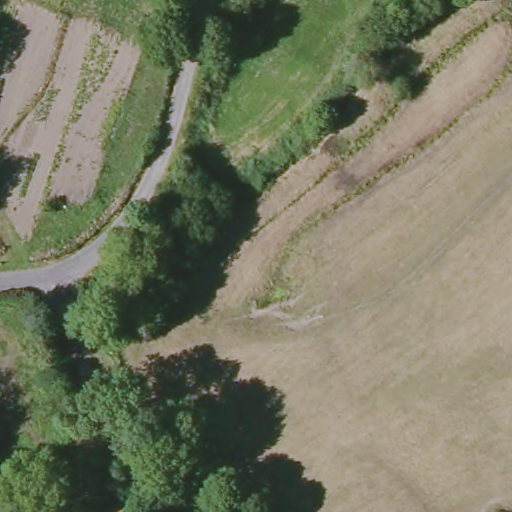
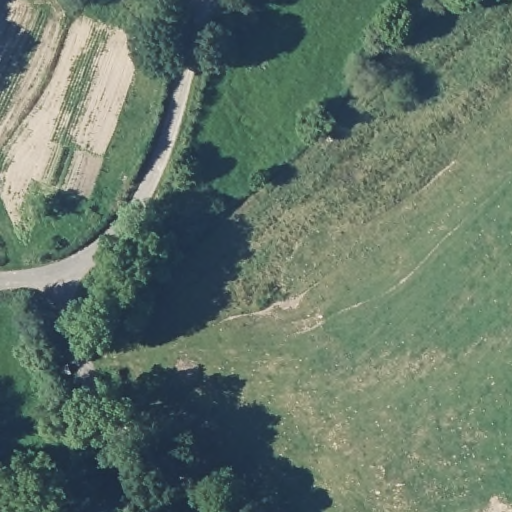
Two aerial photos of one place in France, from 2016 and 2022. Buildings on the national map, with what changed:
unchanged [(99,512),(98,507),(125,502),(125,507),(126,512),(99,512)]

